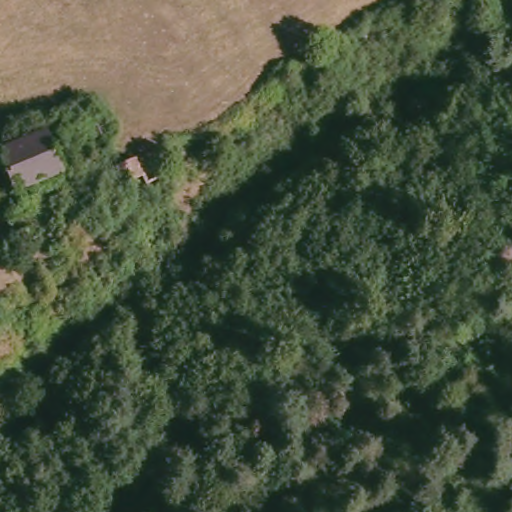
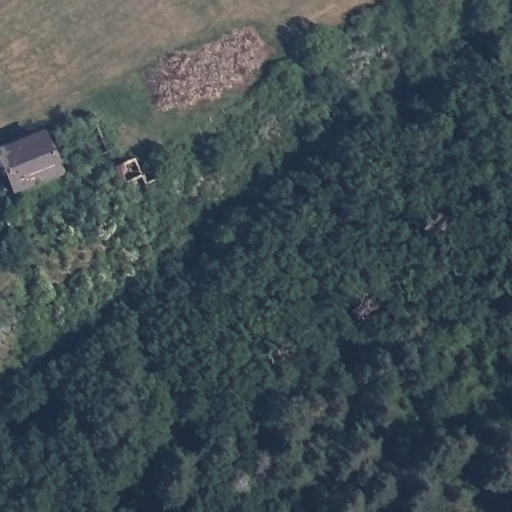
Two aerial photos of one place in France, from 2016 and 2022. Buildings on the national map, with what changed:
unchanged [(58,171),(9,194),(31,242),(10,253),(0,230),(0,179),(3,177),(0,172),(0,151),(40,134),(58,171)]
unchanged [(166,176),(159,180),(122,196),(111,170),(156,148),(166,176)]
unchanged [(18,271),(36,262),(49,290),(33,301),(18,271)]

